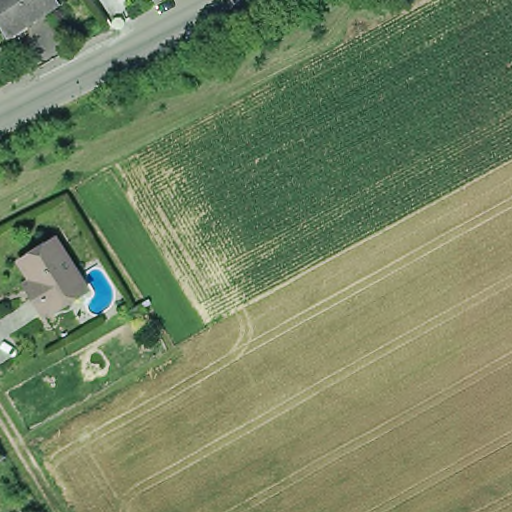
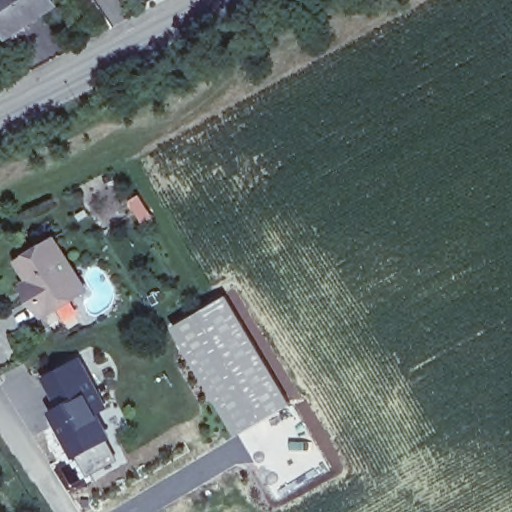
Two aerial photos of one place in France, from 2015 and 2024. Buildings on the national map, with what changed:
unchanged [(8,31),(0,20),(0,0),(55,0),(8,31)]
unchanged [(33,275),(23,258),(57,239),(88,290),(44,310),(33,291),(26,281),(33,275)]
new [(223,291),(290,405),(231,436),(166,326),(223,291)]
new [(74,458),(48,411),(59,405),(44,377),(83,356),(99,386),(89,391),(114,436),(74,458)]

